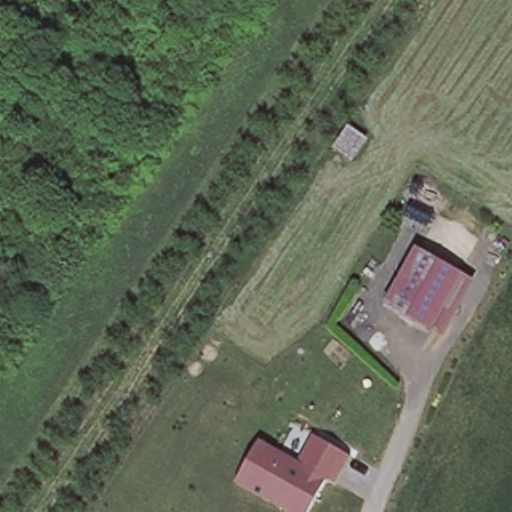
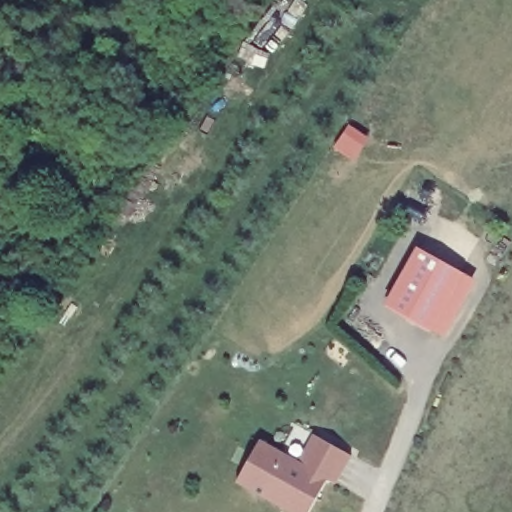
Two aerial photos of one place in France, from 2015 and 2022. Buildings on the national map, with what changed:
unchanged [(382,301),(418,241),(475,275),(443,335),(382,301)]
unchanged [(300,460),(313,435),(351,454),(335,485),(325,480),(308,512),(287,512),(238,486),(260,439),(300,460)]

